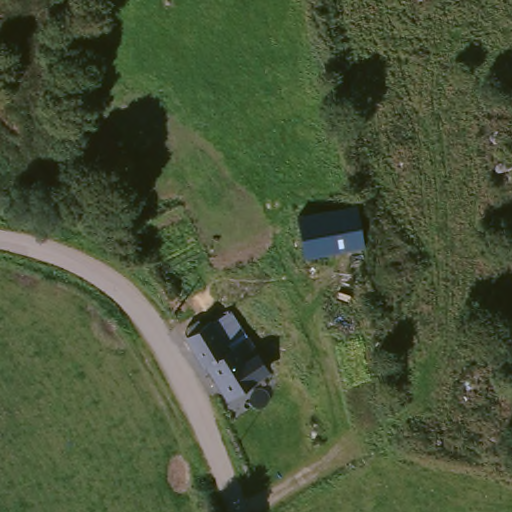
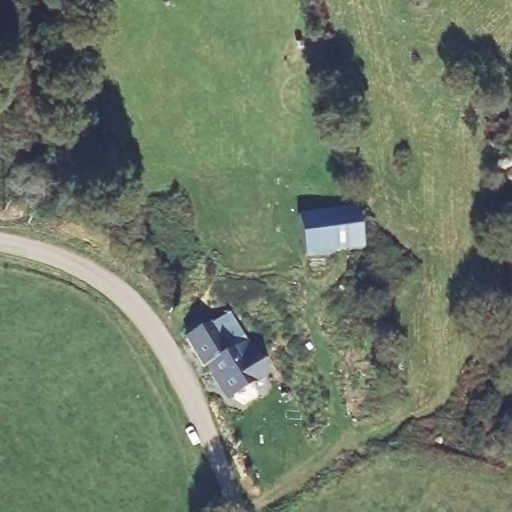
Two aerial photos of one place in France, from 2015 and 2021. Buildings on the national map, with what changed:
unchanged [(366,247),(303,257),(298,215),(358,204),(366,247)]
unchanged [(192,336),(188,326),(199,318),(203,325),(226,311),(266,381),(228,406),(188,338),(192,336)]

